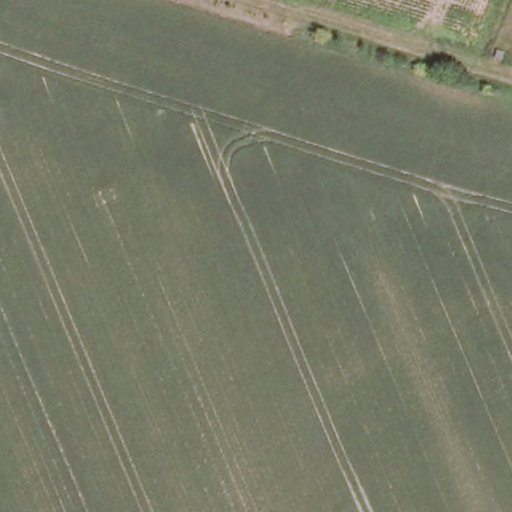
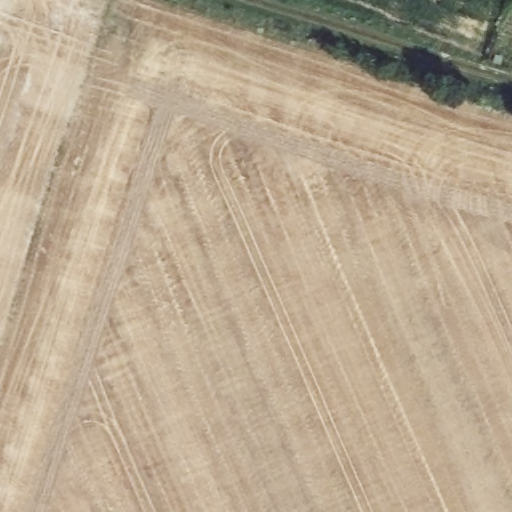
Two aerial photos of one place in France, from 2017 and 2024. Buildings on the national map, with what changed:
unchanged [(490,54),(492,45),(499,47),(497,56),(490,54)]

